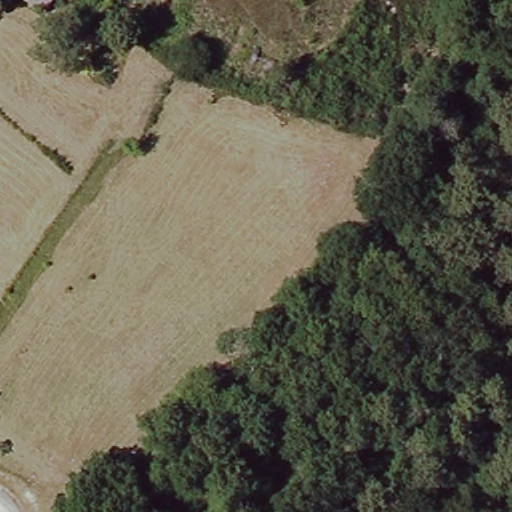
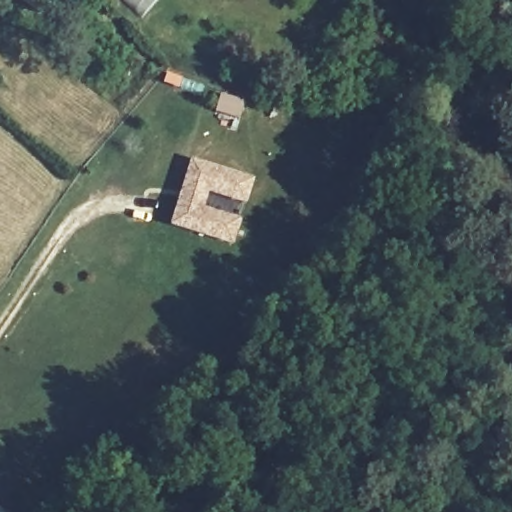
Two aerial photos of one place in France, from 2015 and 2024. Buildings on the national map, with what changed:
unchanged [(23,0),(46,0),(39,11),(23,0)]
new [(191,160),(254,180),(246,205),(208,194),(204,209),(241,220),(234,246),(170,225),(191,160)]

